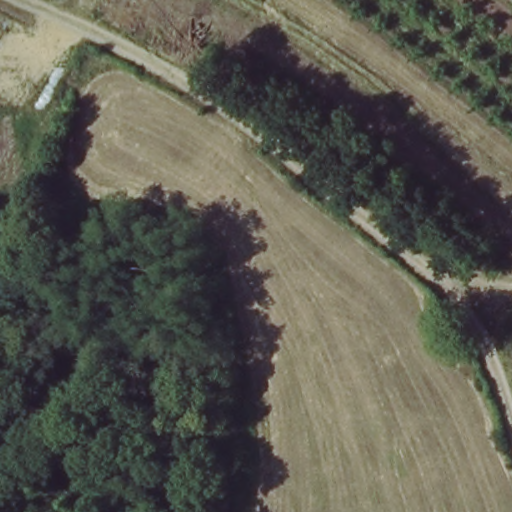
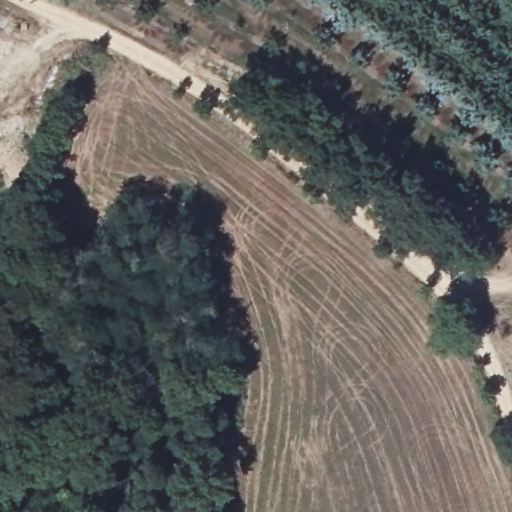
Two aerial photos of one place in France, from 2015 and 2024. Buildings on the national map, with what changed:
[]

